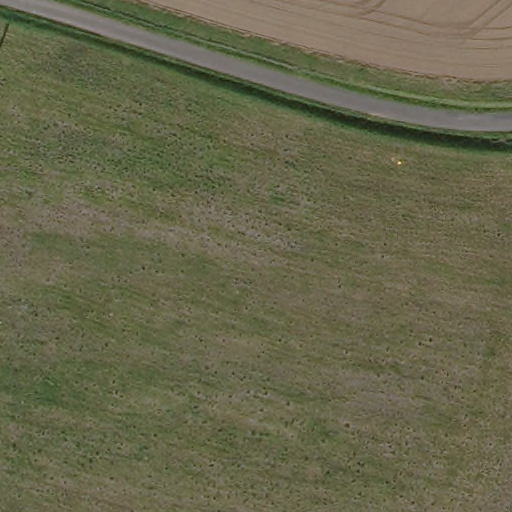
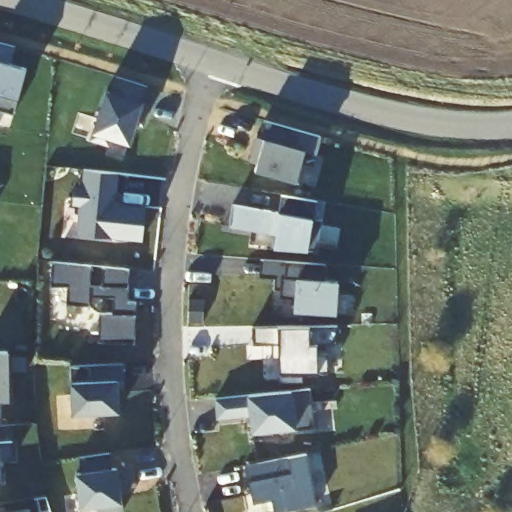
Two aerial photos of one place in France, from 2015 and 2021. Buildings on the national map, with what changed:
new [(0,111),(0,45),(14,48),(10,65),(25,69),(17,99),(16,99),(14,114),(0,111)]
new [(106,90),(112,91),(116,79),(147,89),(143,102),(129,145),(110,139),(109,147),(90,141),(92,133),(106,90)]
new [(255,136),(261,139),(264,122),(322,136),(317,155),(305,150),(296,183),(255,171),(257,162),(248,161),(255,136)]
new [(110,237),(110,239),(77,236),(80,207),(72,207),(74,187),(82,188),(83,171),(118,174),(115,203),(144,207),(141,242),(110,237)]
new [(232,205),(279,213),(281,196),(317,201),(315,219),(321,220),(317,252),(307,252),(273,249),(276,235),(230,227),(232,205)]
new [(286,262),(325,265),(323,281),(338,282),(336,315),(294,312),(295,300),(280,299),(280,279),(285,279),(286,262)]
new [(99,342),(99,314),(114,314),(113,298),(88,298),(87,306),(67,305),(67,287),(50,286),(52,264),(90,267),(89,287),(102,287),(102,268),(128,270),(127,303),(135,303),(134,344),(99,342)]
new [(337,326),(337,345),(318,345),(317,355),(327,355),(327,374),(303,374),(303,383),(280,383),(279,346),(252,346),(252,328),(337,326)]
new [(8,354),(9,401),(0,402),(0,354),(8,354)]
new [(71,367),(122,365),(123,381),(117,382),(119,414),(72,415),(71,384),(71,367)]
new [(254,439),(252,433),(250,433),(249,417),(217,420),(214,400),(247,398),(247,396),(293,391),(293,393),(308,391),(313,429),(293,431),(293,430),(272,432),(273,437),(254,439)]
new [(11,442),(12,459),(0,461),(0,444),(11,442)]
new [(79,458),(109,455),(111,470),(117,469),(132,466),(135,487),(120,490),(122,504),(123,512),(99,512),(99,507),(81,509),(76,473),(82,473),(79,458)]
new [(253,505),(245,467),(305,455),(316,506),(287,512),(274,512),(272,501),(253,505)]
new [(2,481),(0,482),(0,466),(2,481)]

